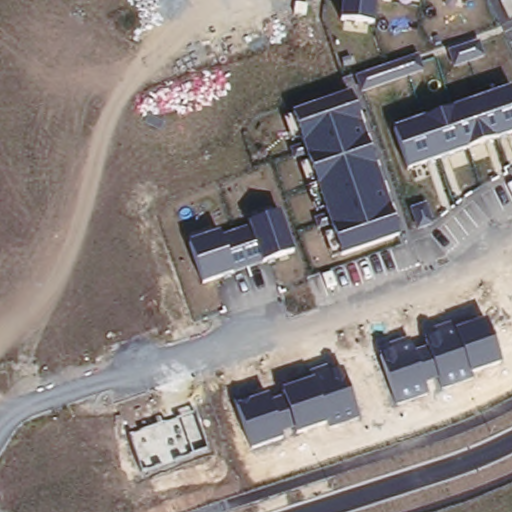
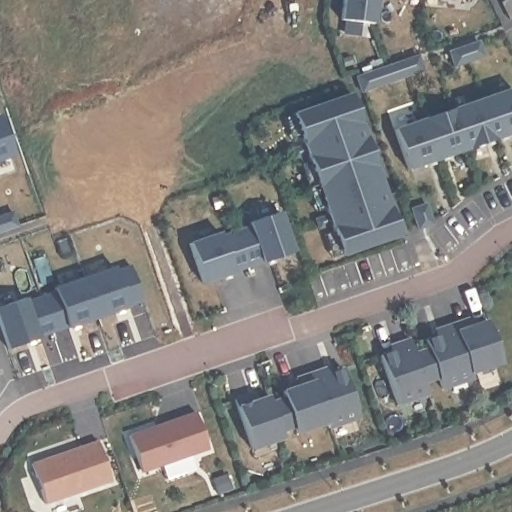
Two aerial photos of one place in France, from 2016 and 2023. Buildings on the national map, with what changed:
unchanged [(377,0),(374,24),(340,19),(342,0),(377,0)]
unchanged [(397,126),(512,87),(512,132),(412,168),(397,126)]
unchanged [(292,112),(352,94),(399,236),(341,256),(292,112)]
new [(0,128),(10,157),(0,161),(0,128)]
unchanged [(202,282),(188,241),(282,211),(294,252),(202,282)]
new [(0,217),(9,214),(14,228),(0,233),(0,217)]
new [(124,309),(35,338),(35,340),(4,351),(0,338),(0,307),(21,300),(23,303),(52,293),(51,289),(110,269),(112,272),(126,267),(139,303),(124,308),(124,309)]
unchanged [(471,372),(473,380),(441,391),(437,379),(425,383),(428,396),(396,404),(379,350),(411,340),(414,351),(427,347),(424,334),(453,325),(455,329),(485,317),(501,362),(471,372)]
unchanged [(328,429),(325,422),(296,431),(294,426),(280,430),(282,437),(249,448),(234,405),(269,393),(271,400),(285,396),(283,388),(312,379),(310,371),(327,366),(330,371),(344,367),(360,418),(328,429)]
unchanged [(127,435),(196,412),(211,450),(141,473),(127,435)]
new [(94,442),(107,482),(41,505),(27,465),(94,442)]

